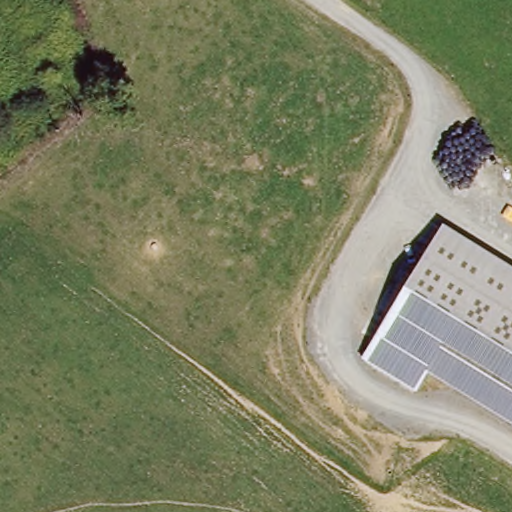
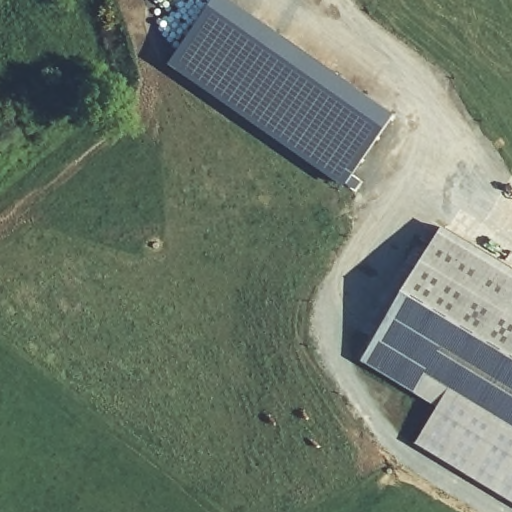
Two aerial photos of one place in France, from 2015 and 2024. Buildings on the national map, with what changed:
new [(214,0),(230,0),(320,61),(395,116),(347,189),(169,65),(214,0)]
unchanged [(444,225),(512,266),(512,502),(418,445),(438,408),(417,393),(363,360),(444,225)]

